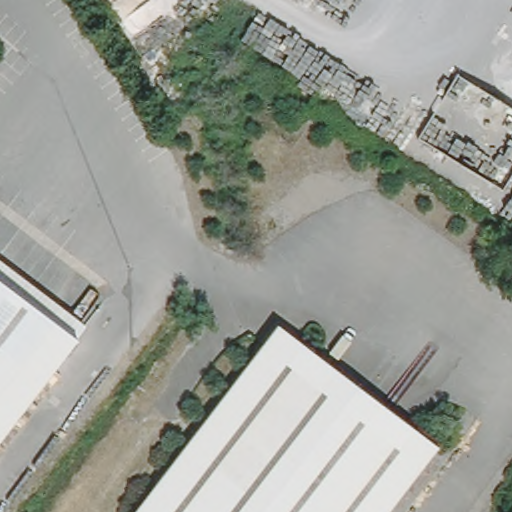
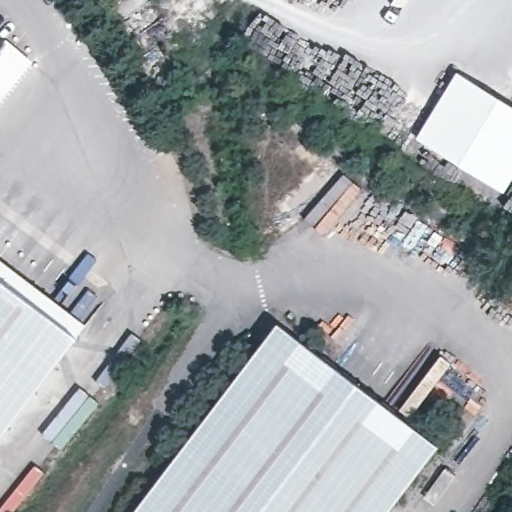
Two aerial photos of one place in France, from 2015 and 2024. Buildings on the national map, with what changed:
new [(0,52),(8,42),(31,61),(0,99),(0,52)]
new [(512,106),(512,180),(505,192),(417,138),(459,72),(512,106)]
unchanged [(78,338),(0,278),(0,259),(88,326),(78,338)]
unchanged [(0,441),(0,278),(78,338),(0,441)]
unchanged [(388,512),(134,512),(278,325),(438,446),(388,512)]

